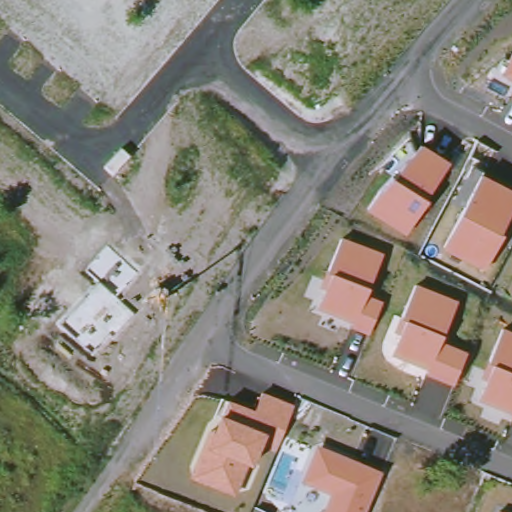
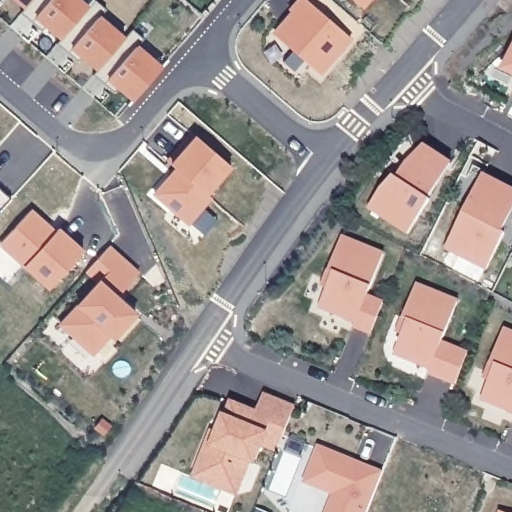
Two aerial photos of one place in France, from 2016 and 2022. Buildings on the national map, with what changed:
new [(17,0),(31,0),(25,7),(17,0)]
new [(80,0),(88,7),(61,38),(25,7),(31,0),(80,0)]
new [(94,0),(96,0),(105,9),(99,16),(124,38),(97,69),(61,38),(88,7),(94,0)]
new [(290,9),(298,0),(308,0),(350,36),(320,72),(276,34),(295,13),(290,9)]
new [(355,0),(369,0),(363,7),(355,0)]
new [(124,38),(132,28),(143,38),(136,45),(162,67),(134,100),(97,69),(124,38)]
new [(512,34),(512,69),(499,60),(512,34)]
new [(512,79),(512,88),(507,85),(512,79)]
new [(176,168),(168,161),(192,133),(231,166),(207,193),(210,196),(187,222),(155,194),(176,168)]
unchanged [(451,163),(427,199),(430,202),(407,232),(368,207),(393,176),(398,179),(423,144),(451,163)]
unchanged [(504,233),(484,268),(441,247),(482,171),(512,188),(512,210),(500,231),(504,233)]
new [(11,199),(0,212),(0,189),(11,199)]
new [(31,209),(48,225),(45,229),(51,234),(58,228),(83,251),(50,288),(0,244),(31,209)]
unchanged [(368,333),(351,325),(353,319),(318,306),(331,272),(326,267),(342,233),(381,252),(367,290),(381,299),(368,333)]
new [(98,282),(87,271),(109,246),(138,273),(117,297),(135,313),(113,337),(110,334),(92,353),(60,324),(98,282)]
unchanged [(454,383),(425,371),(427,366),(392,352),(405,319),(401,317),(416,281),(456,299),(441,337),(466,350),(454,383)]
unchanged [(492,363),(488,362),(503,325),(512,329),(512,411),(480,399),(492,363)]
new [(187,470),(230,393),(255,401),(261,388),(297,401),(278,453),(261,446),(242,490),(187,470)]
unchanged [(365,512),(323,512),(330,494),(302,480),(317,444),(381,471),(365,512)]
unchanged [(497,510),(502,512),(496,512),(497,510)]

